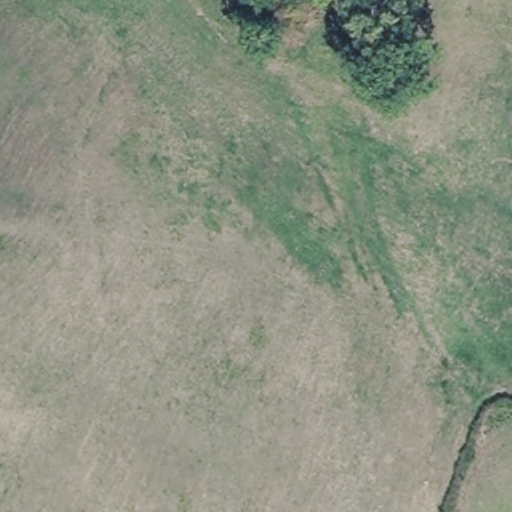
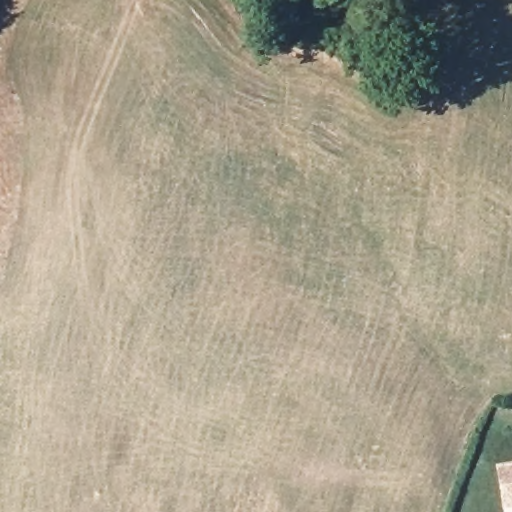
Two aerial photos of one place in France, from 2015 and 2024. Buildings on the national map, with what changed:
new [(503,508),(496,465),(512,462),(512,507),(503,508)]

